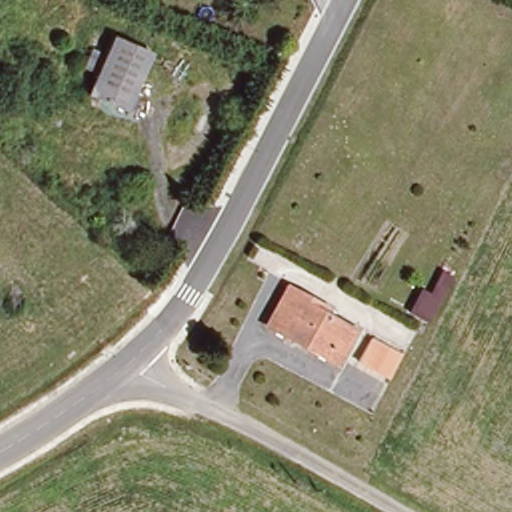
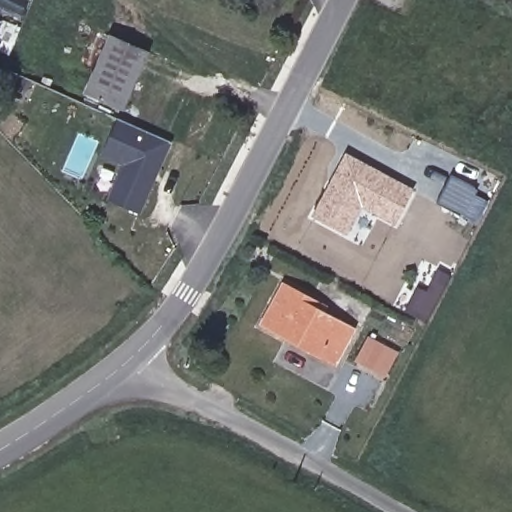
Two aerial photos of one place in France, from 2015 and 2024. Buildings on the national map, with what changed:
unchanged [(120,110),(83,87),(110,31),(150,52),(120,110)]
unchanged [(17,117),(0,106),(0,105),(10,83),(28,95),(17,117)]
new [(101,156),(118,119),(170,141),(140,213),(107,199),(122,165),(101,156)]
new [(348,235),(310,216),(346,151),(414,188),(395,225),(363,207),(348,235)]
new [(475,194),(488,201),(476,222),(437,201),(451,174),(477,188),(475,194)]
unchanged [(411,330),(392,319),(403,297),(412,302),(425,276),(436,283),(411,330)]
unchanged [(335,361),(262,322),(280,282),(328,306),(325,313),(351,327),(335,361)]
unchanged [(384,372),(355,358),(365,336),(394,351),(384,372)]

